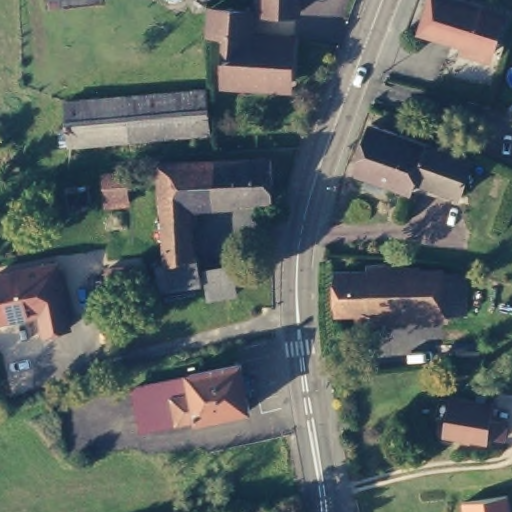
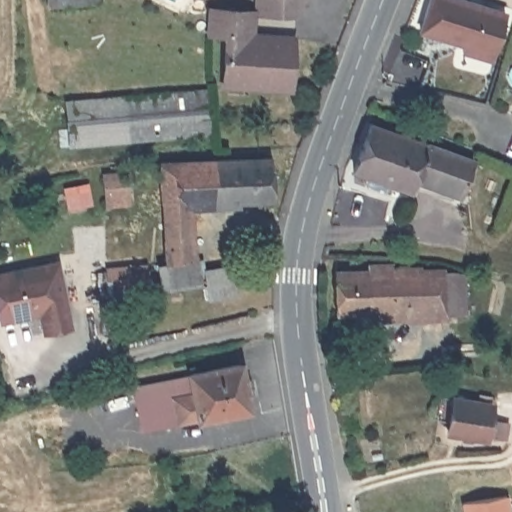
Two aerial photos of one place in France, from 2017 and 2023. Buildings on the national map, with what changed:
unchanged [(299,14),(262,12),(262,0),(300,0),(299,14)]
unchanged [(511,11),(499,50),(408,24),(414,0),(471,0),(511,11)]
unchanged [(257,36),(299,39),(299,44),(231,42),(231,37),(231,33),(224,33),(215,32),(216,11),(226,12),(258,14),(257,36)]
unchanged [(251,90),(228,89),(231,42),(299,44),(296,82),(296,93),(251,90)]
unchanged [(73,145),(69,102),(208,91),(212,134),(73,145)]
unchanged [(462,195),(414,180),(411,189),(399,185),(398,190),(376,182),(379,176),(356,168),(373,122),(476,157),(462,195)]
unchanged [(174,260),(168,167),(278,159),(278,198),(200,204),(203,286),(168,288),(166,261),(174,260)]
unchanged [(129,168),(132,206),(103,209),(99,170),(129,168)]
unchanged [(60,258),(71,329),(38,334),(34,317),(0,323),(0,269),(60,258)]
unchanged [(443,271),(443,278),(462,278),(464,317),(444,317),(391,318),(389,313),(375,313),(375,312),(336,312),(334,275),(369,273),(369,267),(389,267),(388,272),(443,271)]
unchanged [(209,272),(235,270),(237,297),(211,299),(209,272)]
unchanged [(133,386),(148,383),(189,375),(189,372),(239,362),(243,376),(248,375),(252,392),(246,393),(249,408),(158,427),(141,430),(133,386)]
unchanged [(459,402),(496,413),(493,426),(509,432),(505,445),(488,440),(487,442),(450,431),(459,402)]
unchanged [(509,512),(466,512),(464,505),(507,498),(509,512)]

